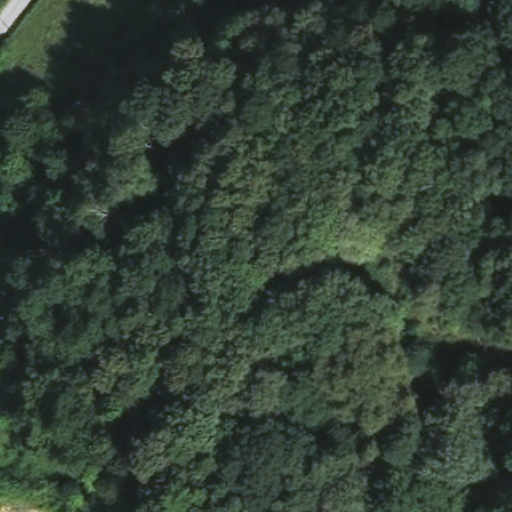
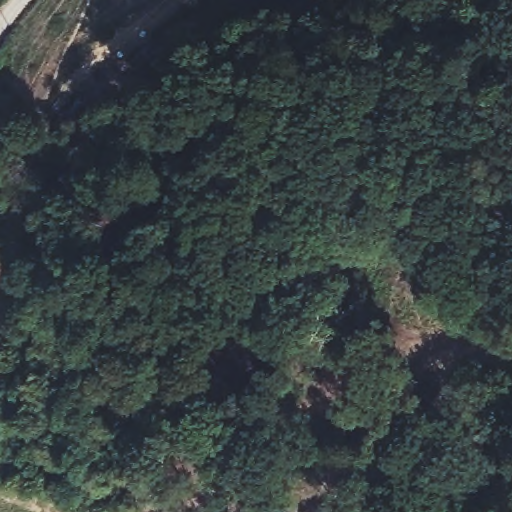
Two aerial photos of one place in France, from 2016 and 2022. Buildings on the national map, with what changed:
[]

